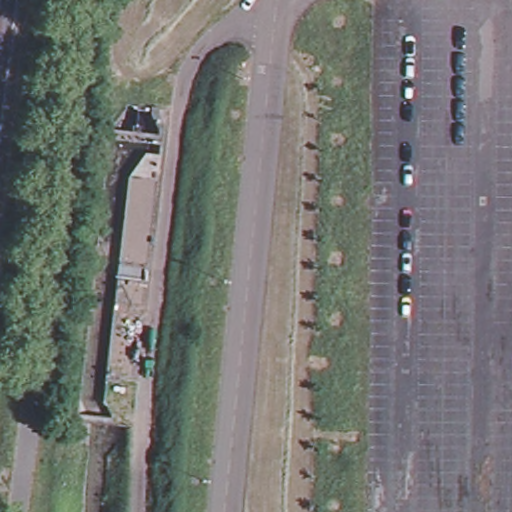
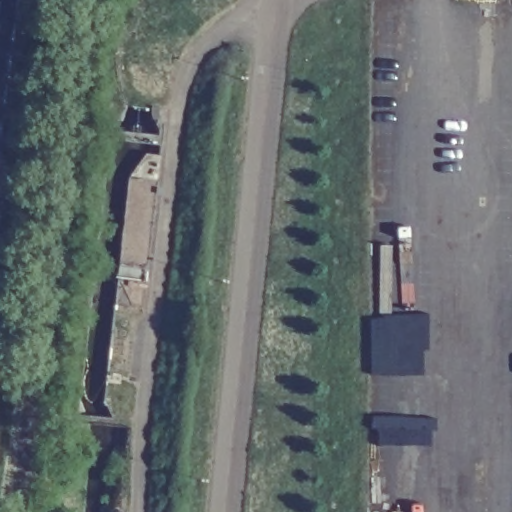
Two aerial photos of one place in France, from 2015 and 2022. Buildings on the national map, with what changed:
unchanged [(130,177),(156,178),(129,421),(105,419),(130,177)]

